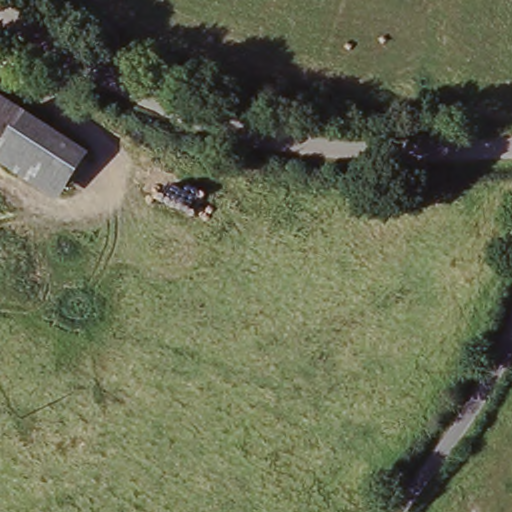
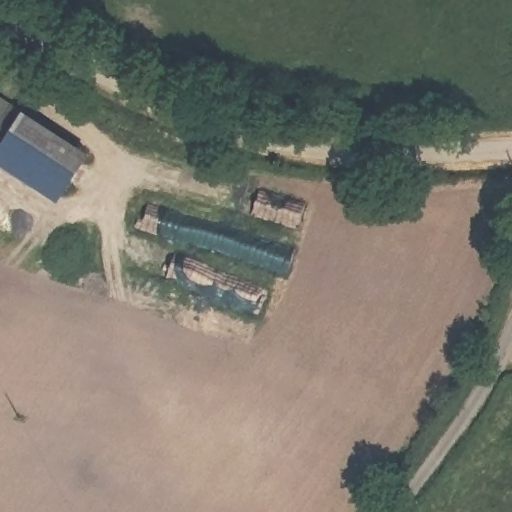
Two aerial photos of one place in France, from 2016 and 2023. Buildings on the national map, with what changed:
unchanged [(22,109),(0,144),(0,95),(22,109)]
unchanged [(22,109),(87,149),(60,195),(0,158),(0,144),(22,109)]

